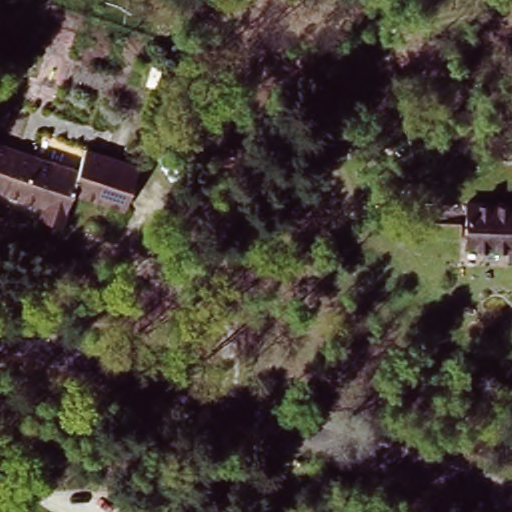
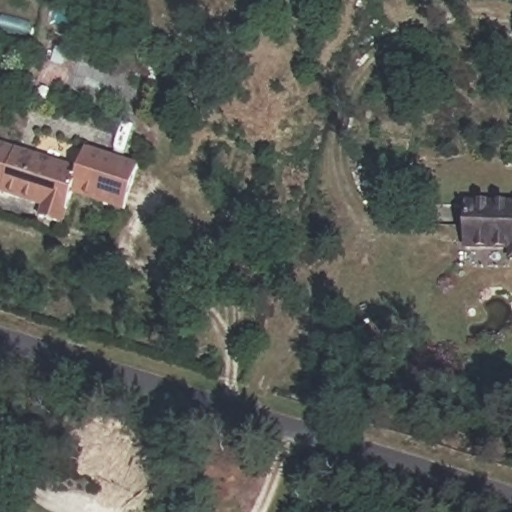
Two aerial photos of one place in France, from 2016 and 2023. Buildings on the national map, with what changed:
unchanged [(80,174),(87,152),(140,170),(126,212),(73,194),(61,229),(38,221),(41,211),(0,197),(0,148),(80,174)]
unchanged [(458,259),(459,194),(512,196),(512,260),(458,259)]

